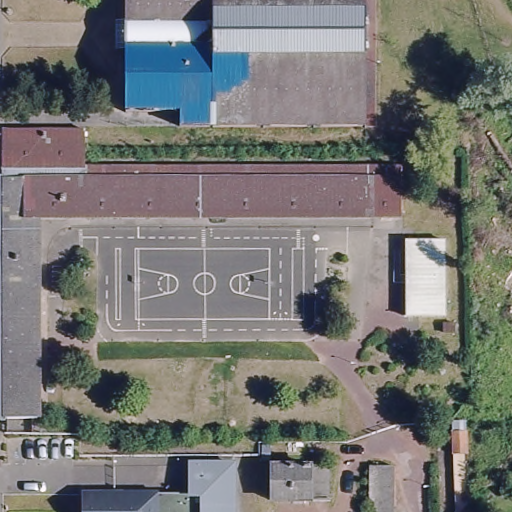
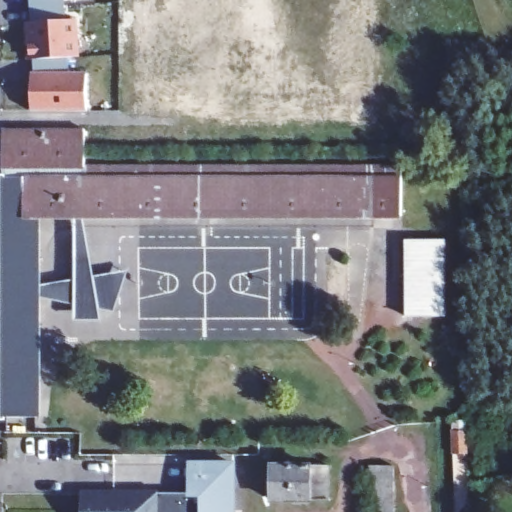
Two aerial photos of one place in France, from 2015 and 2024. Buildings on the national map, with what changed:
new [(67,19),(79,19),(81,57),(71,57),(70,72),(87,72),(87,112),(31,112),(31,72),(34,71),(34,60),(28,60),(27,22),(32,22),(30,0),(65,0),(67,19)]
demolished [(123,0),(364,0),(364,128),(184,128),(183,112),(122,112),(123,50),(123,20),(123,0)]
unchanged [(40,280),(6,280),(6,133),(88,132),(88,169),(406,168),(405,217),(40,219),(40,245),(40,280)]
unchanged [(450,236),(450,313),(411,314),(410,237),(450,236)]
unchanged [(40,420),(5,420),(5,363),(6,280),(40,280),(40,372),(40,420)]
unchanged [(161,491),(177,491),(199,490),(199,461),(236,461),(236,512),(86,512),(86,491),(161,491)]
unchanged [(331,462),(332,498),(274,499),(274,463),(331,462)]
unchanged [(397,512),(373,512),(374,463),(397,463),(397,512)]

